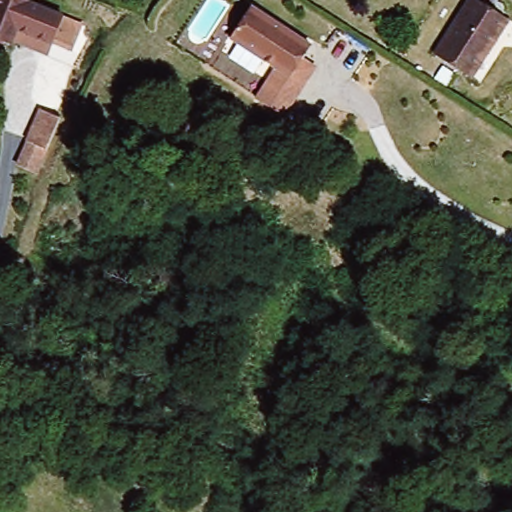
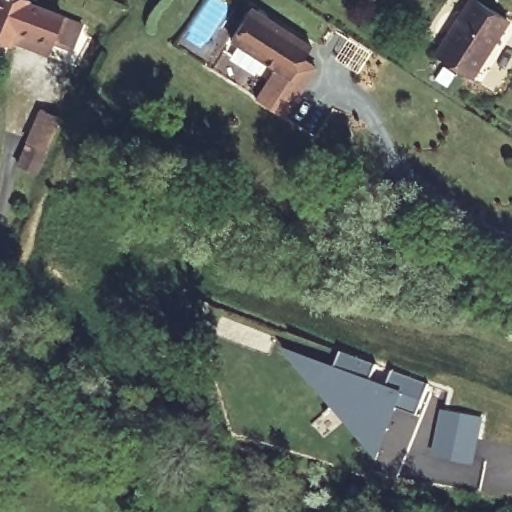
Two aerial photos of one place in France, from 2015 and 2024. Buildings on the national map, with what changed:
unchanged [(13,43),(0,38),(0,0),(31,0),(30,2),(84,24),(73,50),(53,42),(53,43),(49,53),(15,38),(13,43)]
unchanged [(495,37),(497,39),(487,56),(484,54),(469,78),(435,56),(471,0),(474,0),(506,20),(495,37)]
unchanged [(283,122),(256,105),(275,74),(228,44),(249,12),(310,52),(301,65),(314,73),(307,84),(283,122)]
unchanged [(49,154),(30,146),(44,114),(63,122),(49,154)]
new [(284,349),(286,348),(334,365),(341,349),(376,364),(371,378),(386,384),(392,369),(429,383),(408,449),(394,481),(387,475),(331,408),(282,351),(284,349)]
new [(439,408),(483,416),(473,465),(431,457),(439,408)]
unchanged [(158,469),(186,489),(175,505),(147,485),(158,469)]

